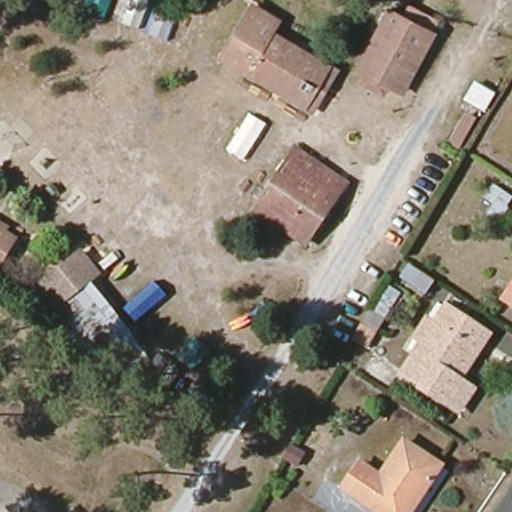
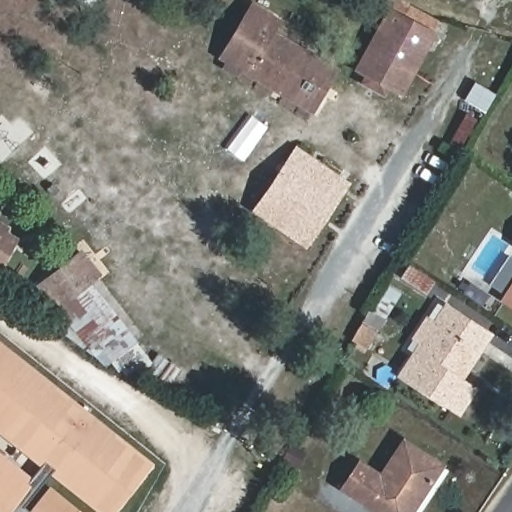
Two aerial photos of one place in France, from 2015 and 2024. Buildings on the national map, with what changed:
unchanged [(284,21),(276,34),(333,66),(307,109),(245,72),(238,80),(227,72),(231,65),(222,59),(254,4),(284,21)]
unchanged [(403,96),(391,90),(387,97),(365,85),(369,79),(358,71),(391,10),(406,20),(411,8),(440,21),(403,96)]
unchanged [(237,127),(251,140),(235,161),(221,149),(237,127)]
unchanged [(296,155),(344,183),(306,244),(296,237),(325,195),(287,169),(296,155)]
unchanged [(325,195),(296,237),(258,211),(287,169),(325,195)]
unchanged [(12,227),(10,232),(21,240),(0,269),(0,220),(12,227)]
unchanged [(92,275),(52,315),(36,293),(69,259),(92,275)]
unchanged [(100,353),(64,323),(89,294),(125,325),(100,353)]
unchanged [(512,298),(512,304),(509,302),(512,298)]
unchanged [(387,319),(370,347),(354,337),(371,310),(387,319)]
unchanged [(476,331),(454,369),(465,382),(451,401),(404,367),(443,310),(476,331)]
new [(124,512),(100,512),(0,432),(0,343),(1,342),(160,466),(124,512)]
unchanged [(370,512),(344,497),(360,472),(386,482),(412,440),(445,462),(412,512),(370,512)]
new [(19,503),(30,512),(0,512),(0,454),(34,482),(19,503)]
new [(84,512),(34,512),(55,488),(84,512)]

